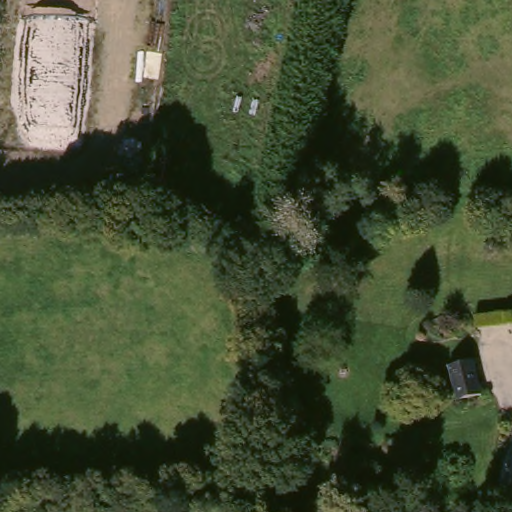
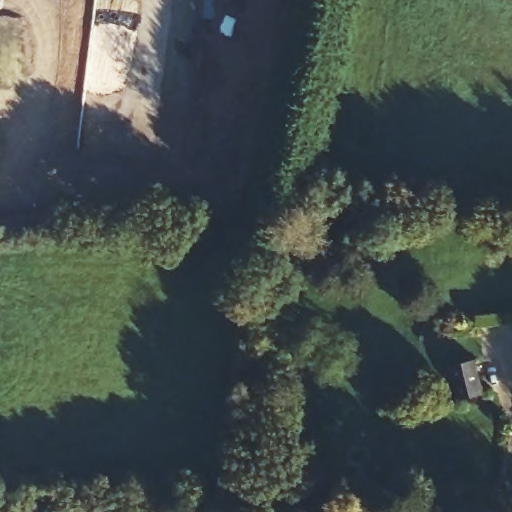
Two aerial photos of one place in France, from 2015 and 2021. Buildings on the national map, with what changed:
unchanged [(479,390),(453,395),(446,360),(471,355),(479,390)]

